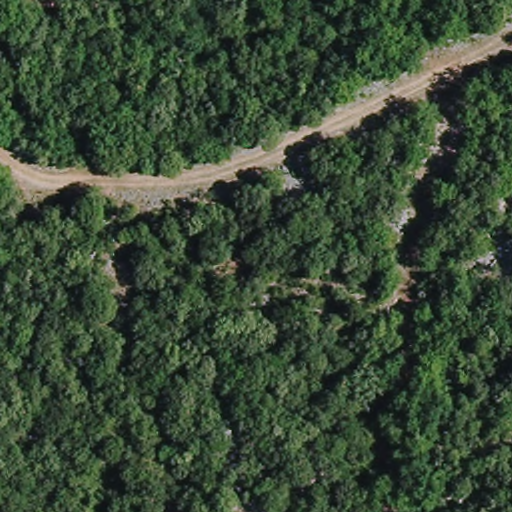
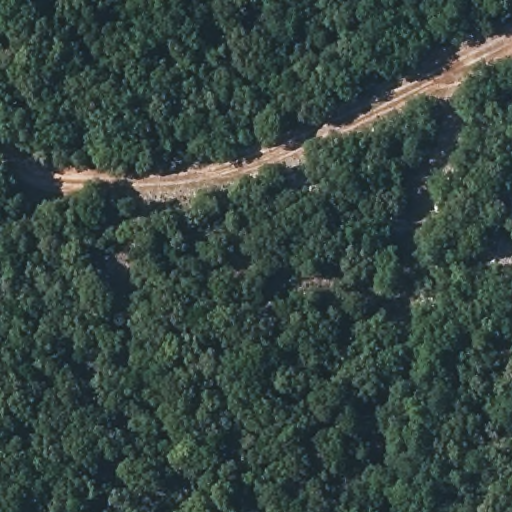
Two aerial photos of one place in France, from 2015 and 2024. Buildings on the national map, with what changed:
[]

